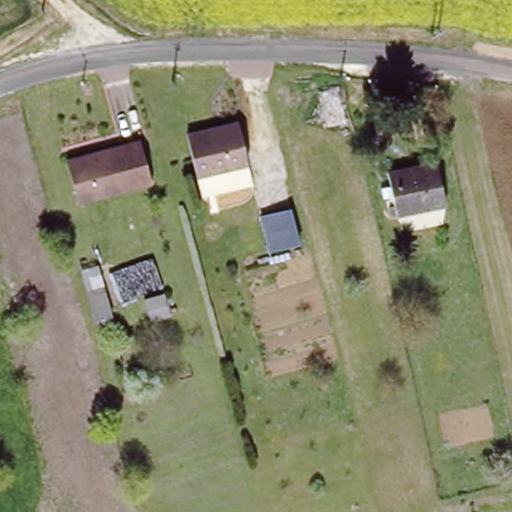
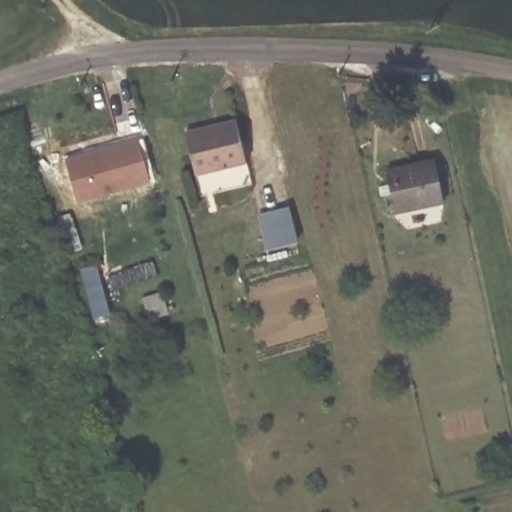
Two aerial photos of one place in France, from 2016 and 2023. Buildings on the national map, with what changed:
unchanged [(205,188),(199,167),(187,125),(193,123),(237,112),(248,154),(253,176),(210,187),(205,188)]
unchanged [(147,140),(155,180),(81,196),(72,155),(147,140)]
unchanged [(436,161),(447,202),(397,215),(387,172),(436,161)]
unchanged [(291,211),(300,245),(272,252),(262,217),(291,211)]

